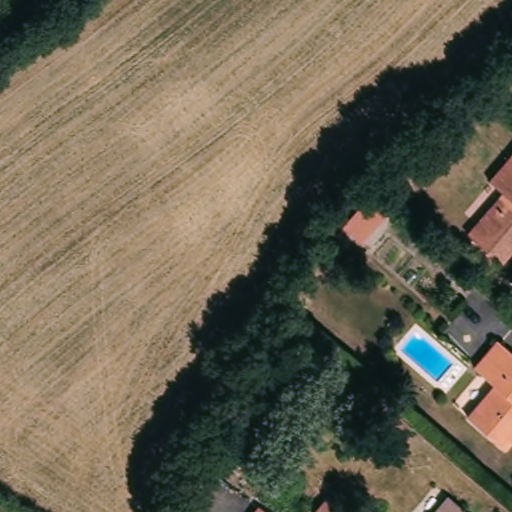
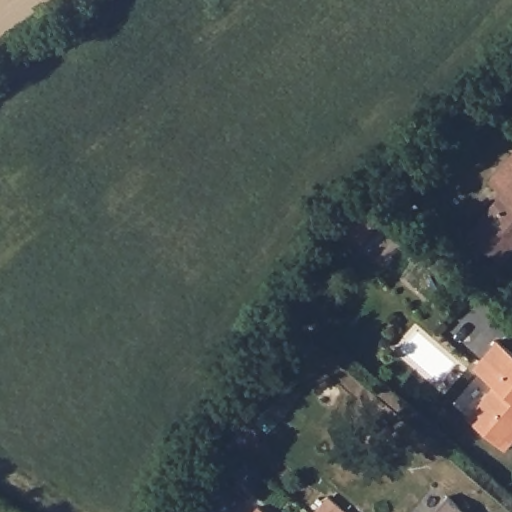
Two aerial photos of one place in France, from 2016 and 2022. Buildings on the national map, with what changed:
unchanged [(468,237),(504,196),(490,185),(511,160),(512,159),(512,256),(502,266),(489,255),(468,237)]
unchanged [(466,418),(491,389),(470,370),(494,341),(512,356),(512,443),(505,451),(498,446),(466,418)]
unchanged [(351,512),(319,512),(333,496),(351,512)]
unchanged [(435,512),(445,499),(461,512),(435,512)]
unchanged [(267,512),(255,512),(259,506),(267,512)]

